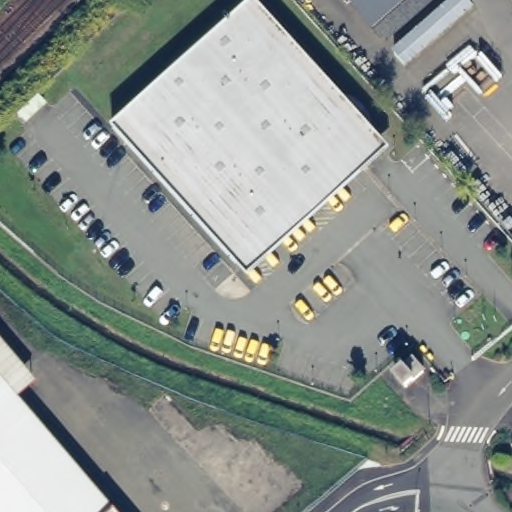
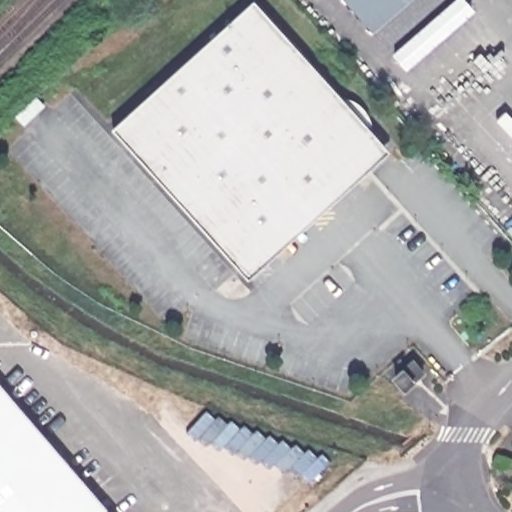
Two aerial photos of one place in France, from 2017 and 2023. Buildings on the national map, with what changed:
unchanged [(252,279),(113,129),(255,0),(392,152),(252,279)]
unchanged [(348,0),(438,0),(387,44),(348,0)]
unchanged [(406,396),(395,384),(415,368),(425,379),(406,396)]
unchanged [(108,512),(0,512),(0,386),(108,512)]

